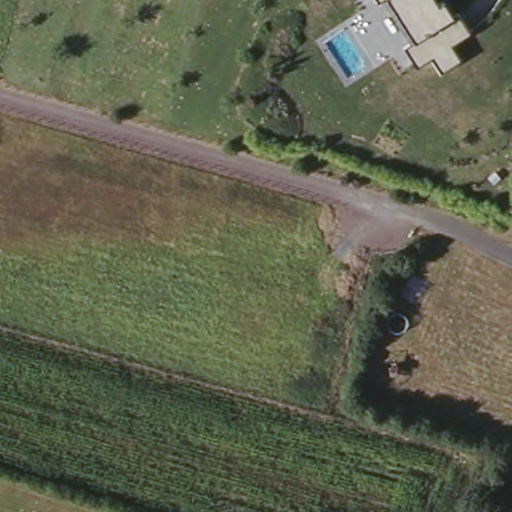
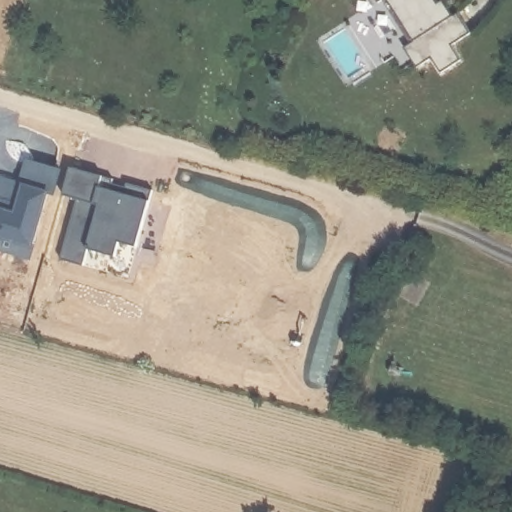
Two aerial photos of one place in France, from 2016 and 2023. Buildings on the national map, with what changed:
unchanged [(380,1),(379,0),(381,0),(380,1)]
unchanged [(436,1),(443,0),(451,15),(468,34),(452,45),(460,60),(443,71),(432,57),(418,65),(405,47),(413,41),(389,0),(436,0),(436,1)]
new [(23,152),(60,160),(35,256),(0,248),(0,241),(2,237),(0,237),(0,175),(16,179),(23,152)]
new [(150,189),(137,245),(119,242),(115,255),(84,250),(80,270),(60,266),(75,199),(59,195),(69,164),(150,189)]

